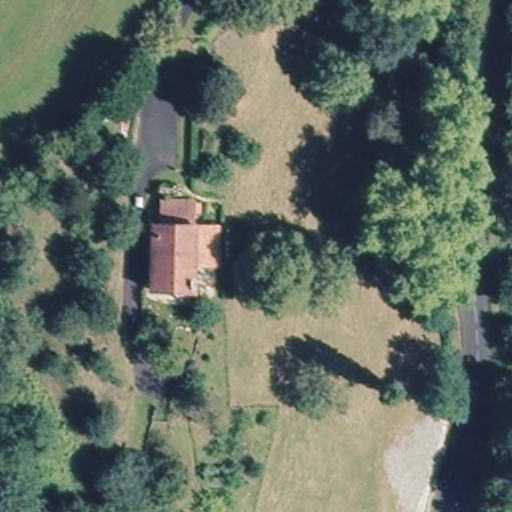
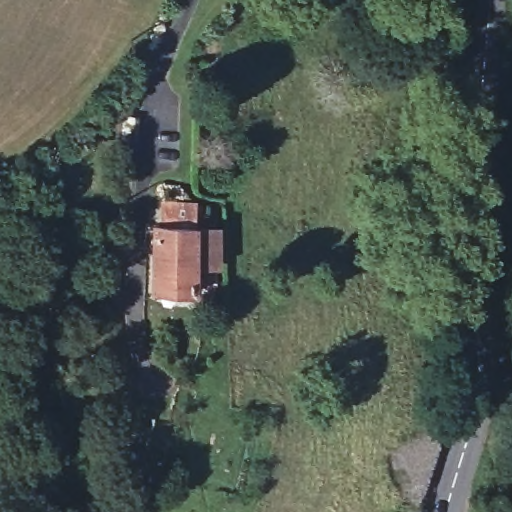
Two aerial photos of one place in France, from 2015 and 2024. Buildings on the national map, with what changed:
unchanged [(153,293),(157,229),(165,229),(166,208),(197,209),(191,294),(153,293)]

